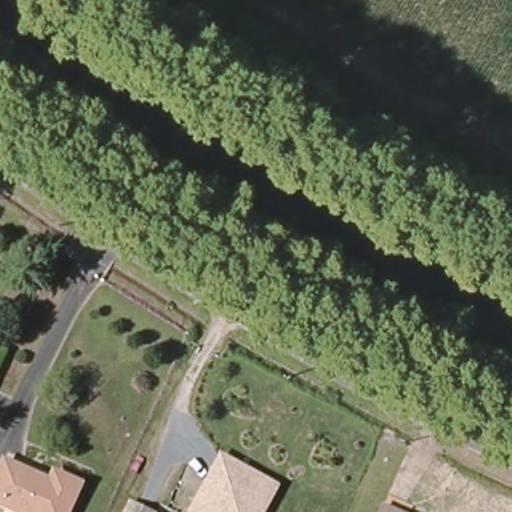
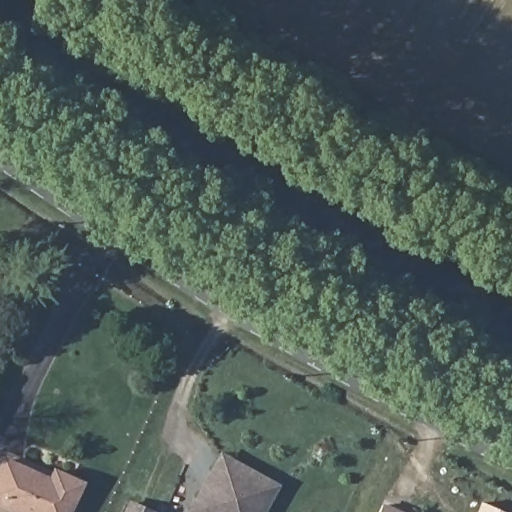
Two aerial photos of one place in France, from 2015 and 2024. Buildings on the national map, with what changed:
unchanged [(390,441),(381,437),(384,430),(393,434),(390,441)]
unchanged [(257,512),(207,512),(190,503),(221,447),(229,452),(276,477),(257,512)]
unchanged [(67,512),(24,512),(0,502),(0,468),(3,461),(49,481),(54,471),(62,475),(80,483),(67,512)]
unchanged [(384,505),(399,512),(381,512),(384,505)]
unchanged [(131,506),(145,512),(128,512),(131,506)]

